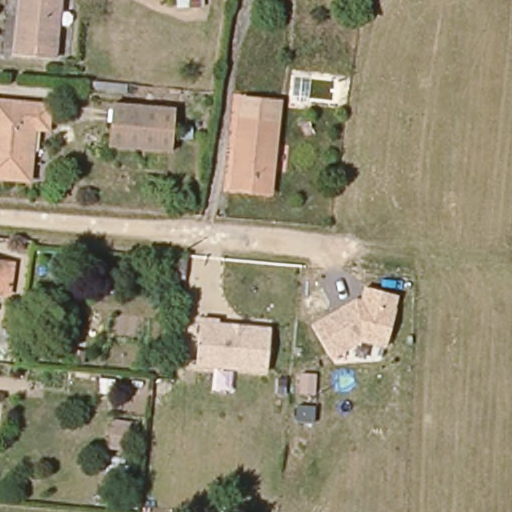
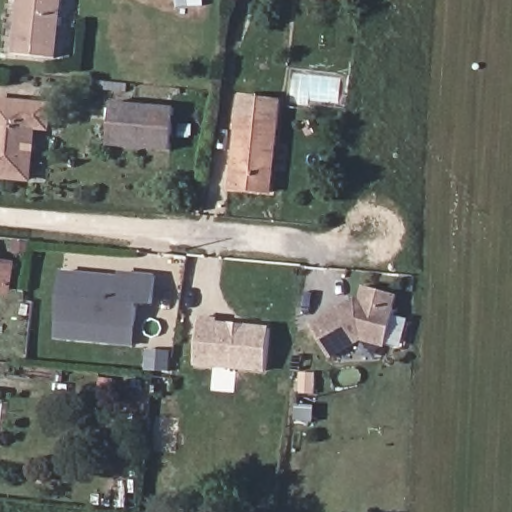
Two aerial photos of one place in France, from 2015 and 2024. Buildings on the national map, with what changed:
unchanged [(16,54),(21,0),(58,0),(53,57),(16,54)]
unchanged [(206,6),(181,7),(181,0),(205,0),(206,6)]
unchanged [(30,128),(27,176),(0,174),(0,101),(48,105),(46,128),(30,128)]
unchanged [(113,147),(115,102),(178,107),(175,150),(113,147)]
unchanged [(237,190),(243,106),(278,106),(272,192),(237,190)]
unchanged [(0,287),(0,260),(11,261),(8,288),(0,287)]
new [(134,348),(58,341),(65,266),(156,275),(153,305),(136,303),(134,348)]
unchanged [(387,347),(362,342),(333,360),(313,325),(355,298),(360,298),(363,286),(400,295),(387,347)]
unchanged [(266,373),(234,372),(232,392),(213,390),(214,368),(196,368),(199,318),(220,320),(219,323),(269,327),(266,373)]

